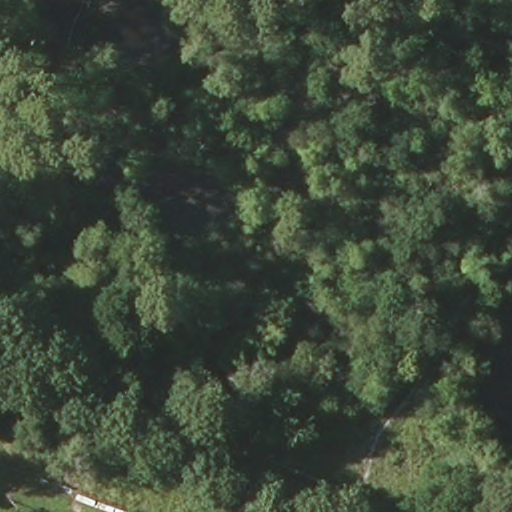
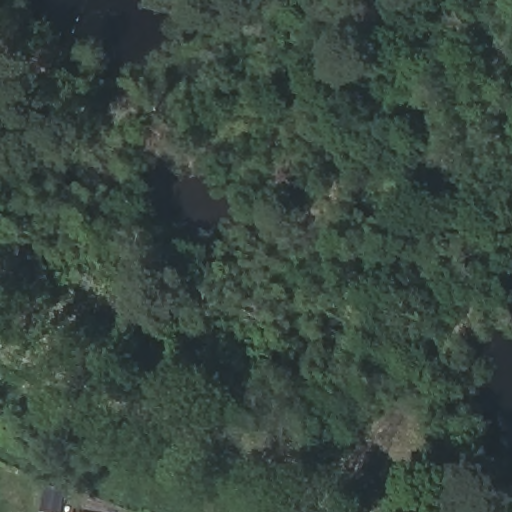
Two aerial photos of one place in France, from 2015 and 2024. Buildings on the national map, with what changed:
[]

